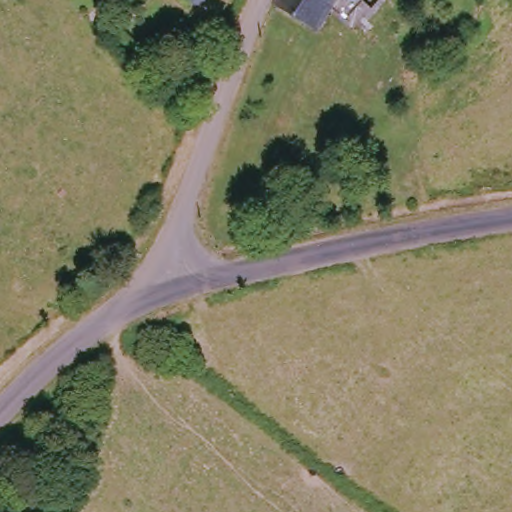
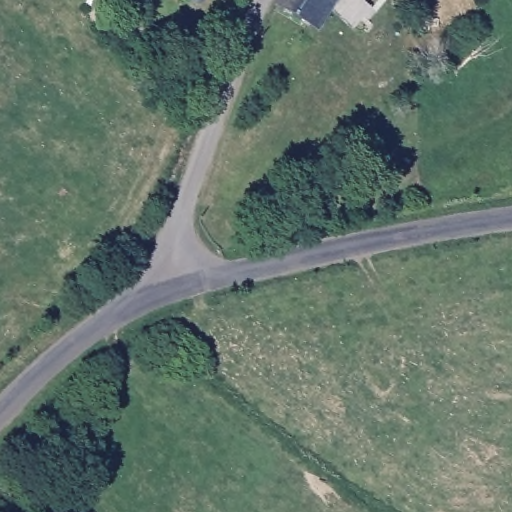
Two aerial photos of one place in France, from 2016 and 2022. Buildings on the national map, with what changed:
unchanged [(200,5),(196,2),(194,4),(189,0),(204,0),(200,5)]
unchanged [(373,6),(358,32),(334,13),(317,41),(276,16),(284,0),(365,0),(373,6)]

